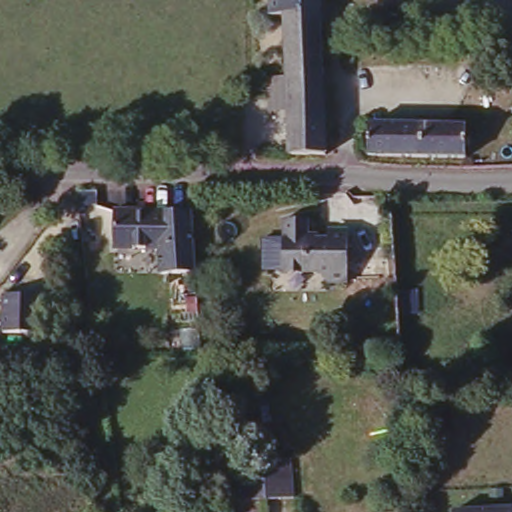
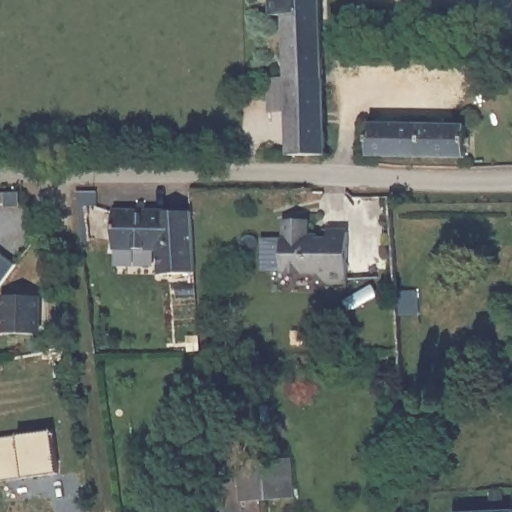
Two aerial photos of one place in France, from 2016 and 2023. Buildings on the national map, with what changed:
unchanged [(280,69),(280,24),(268,25),(268,0),(321,0),(322,157),(280,158),(280,143),(280,69)]
unchanged [(267,142),(262,142),(262,67),(280,69),(280,143),(267,142)]
unchanged [(370,125),(462,125),(462,149),(370,151),(370,125)]
unchanged [(193,207),(198,267),(166,270),(163,244),(120,245),(120,208),(193,207)]
unchanged [(342,276),(342,285),(323,286),(323,275),(281,276),(280,222),(303,221),(304,242),(324,242),(324,236),(341,235),(341,260),(385,258),(387,275),(342,276)]
new [(18,261),(0,284),(0,248),(18,261)]
unchanged [(390,284),(392,300),(375,302),(373,285),(390,284)]
unchanged [(45,295),(44,331),(9,330),(10,294),(45,295)]
new [(20,435),(18,428),(53,426),(59,475),(0,481),(0,437),(20,435)]
unchanged [(234,466),(255,463),(279,459),(285,495),(260,499),(239,502),(234,466)]
unchanged [(509,512),(445,512),(444,505),(508,503),(508,508),(509,512)]
unchanged [(508,508),(512,508),(512,512),(509,512),(508,508)]

